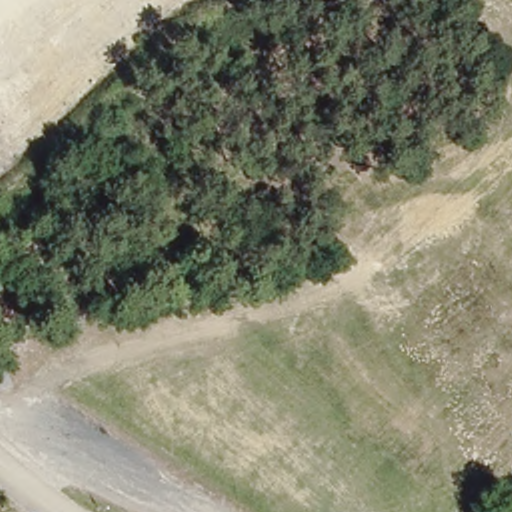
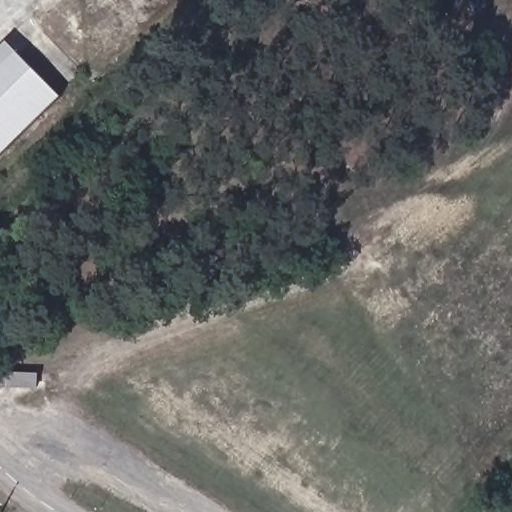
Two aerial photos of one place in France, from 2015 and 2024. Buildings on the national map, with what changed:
new [(0,48),(8,41),(61,96),(0,156),(0,48)]

